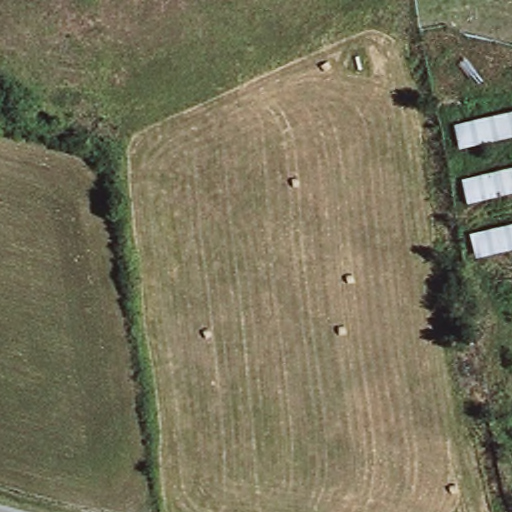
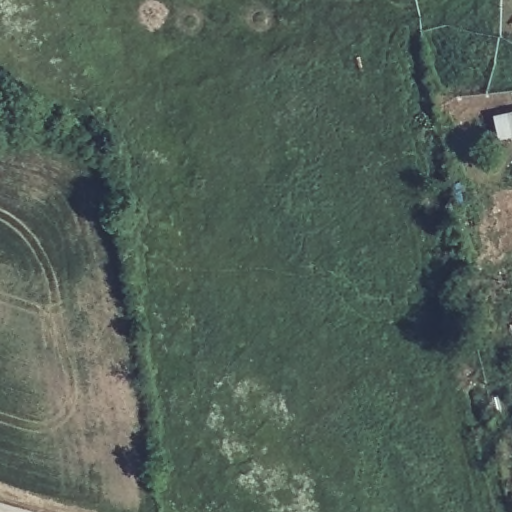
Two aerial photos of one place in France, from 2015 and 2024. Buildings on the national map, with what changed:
unchanged [(512,108),(512,134),(458,146),(451,122),(512,108)]
demolished [(512,163),(512,192),(467,202),(458,175),(512,163)]
demolished [(512,220),(512,245),(475,254),(465,231),(512,220)]

